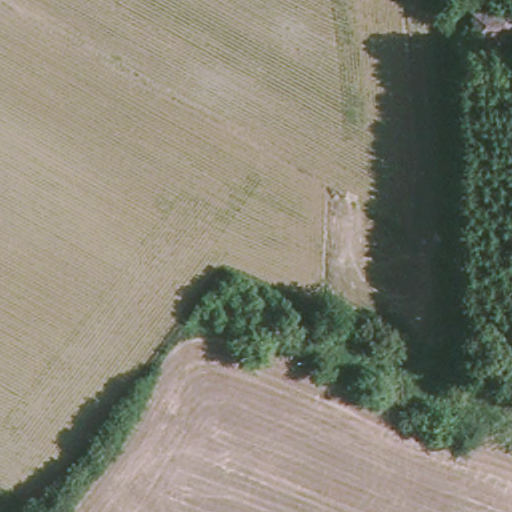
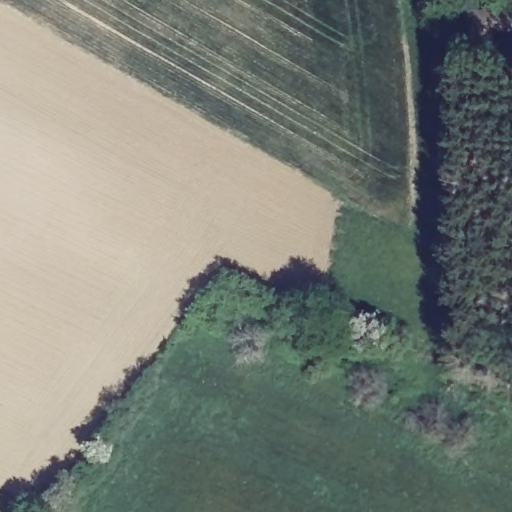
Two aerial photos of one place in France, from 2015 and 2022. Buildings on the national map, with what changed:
unchanged [(470,38),(470,0),(512,0),(512,8),(512,34),(470,38)]

